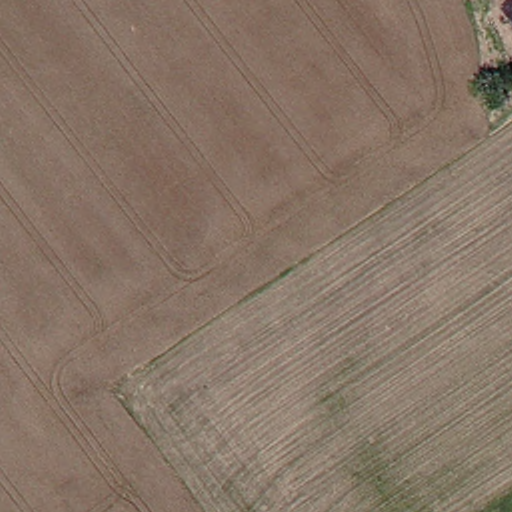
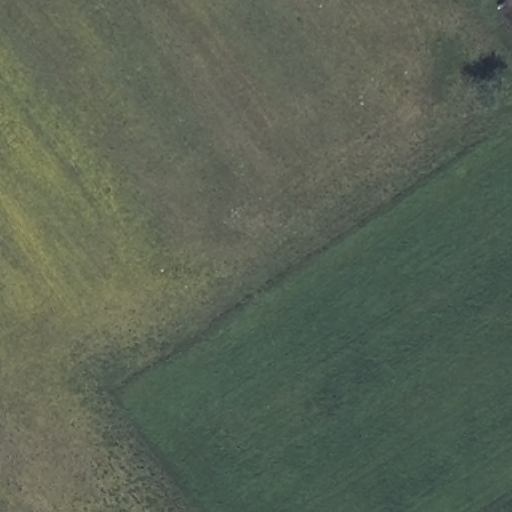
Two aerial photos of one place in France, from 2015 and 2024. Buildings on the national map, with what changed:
unchanged [(499,15),(512,6),(512,33),(499,15)]

